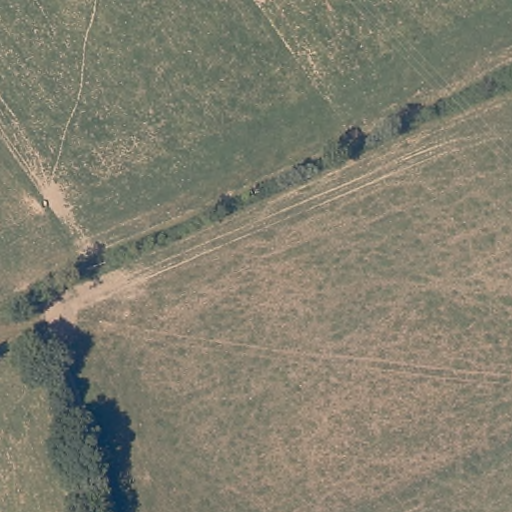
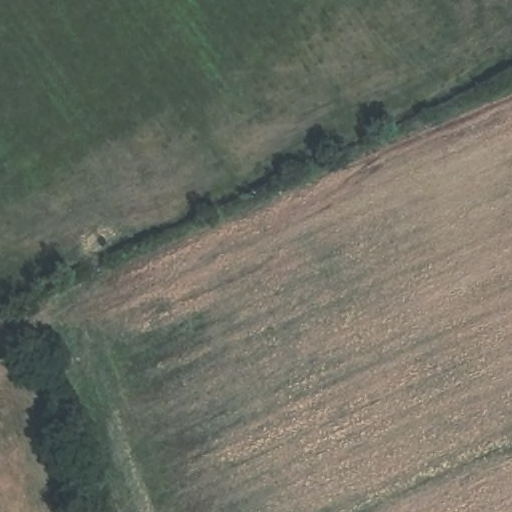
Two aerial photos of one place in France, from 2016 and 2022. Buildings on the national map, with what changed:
[]

